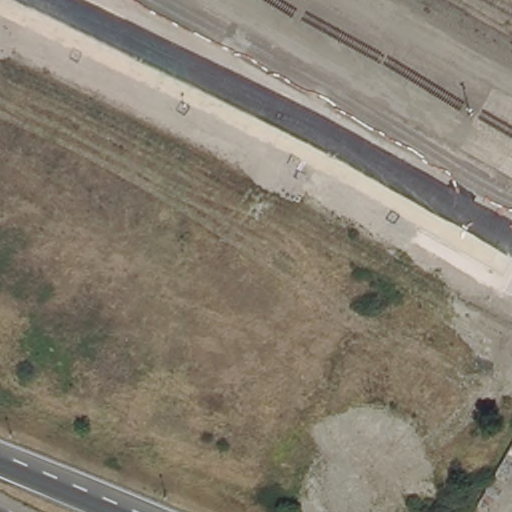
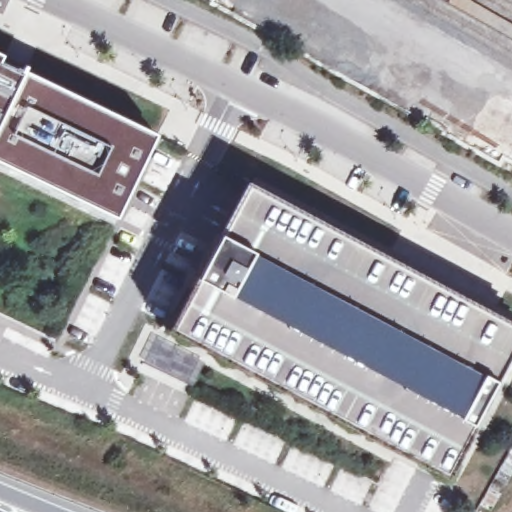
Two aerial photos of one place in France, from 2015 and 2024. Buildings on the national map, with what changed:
new [(4,56),(0,62),(24,72),(0,122),(0,54),(4,56)]
new [(157,135),(117,219),(0,163),(0,122),(24,72),(157,135)]
new [(512,356),(500,380),(476,425),(450,477),(172,331),(198,280),(222,235),(249,186),(512,324),(512,356)]

